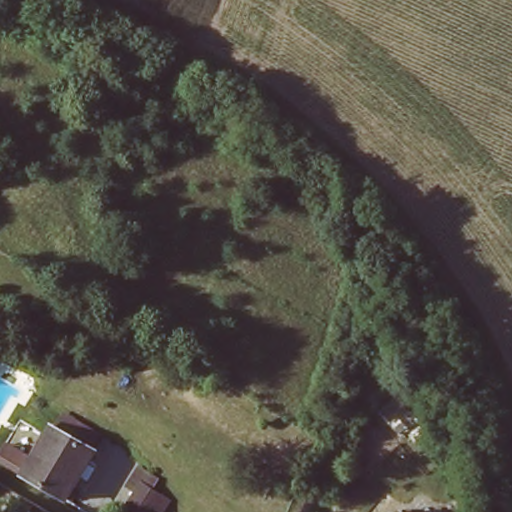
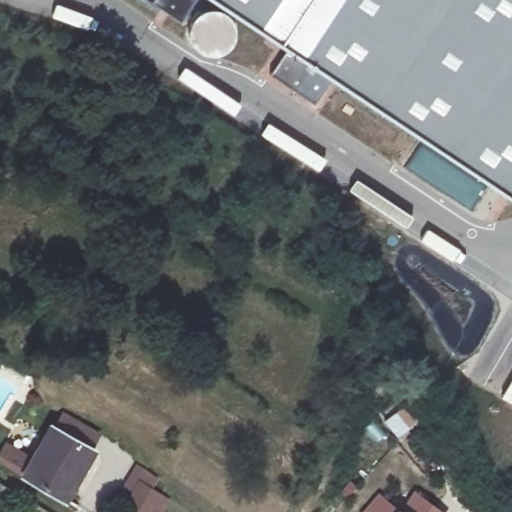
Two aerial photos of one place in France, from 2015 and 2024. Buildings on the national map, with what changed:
new [(151,0),(512,0),(512,196),(334,77),(315,103),(272,74),(293,49),(225,4),(222,8),(228,14),(234,25),(235,35),(230,46),(220,54),(206,53),(193,45),(188,38),(187,27),(152,0),(151,0)]
unchanged [(60,505),(18,480),(47,430),(52,432),(60,418),(94,437),(86,451),(90,454),(60,505)]
unchanged [(153,506),(152,505),(148,512),(136,512),(126,505),(135,491),(126,486),(138,466),(147,471),(146,474),(157,481),(152,489),(160,495),(170,500),(162,511),(153,506)]
unchanged [(0,495),(0,483),(15,491),(9,500),(0,495)]
unchanged [(401,512),(399,512),(400,511),(401,512)]

